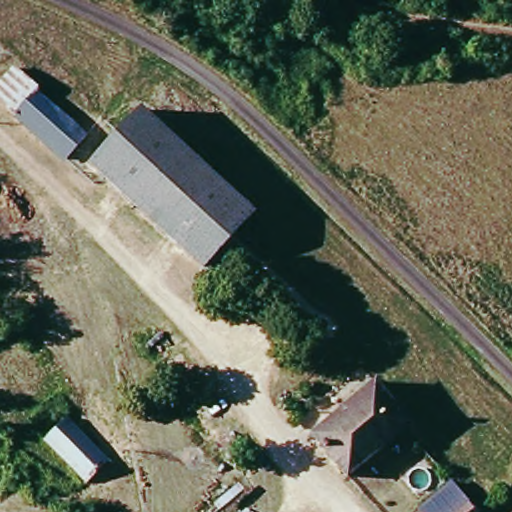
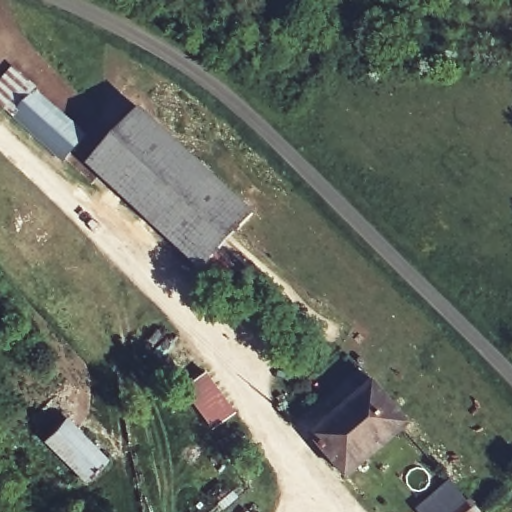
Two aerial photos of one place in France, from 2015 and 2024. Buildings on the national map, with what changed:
unchanged [(0,100),(0,81),(10,70),(86,135),(67,157),(0,100)]
unchanged [(242,266),(225,287),(87,171),(137,111),(257,211),(224,250),(242,266)]
new [(235,412),(211,430),(187,396),(195,390),(189,382),(205,370),(235,412)]
unchanged [(405,423),(347,473),(314,433),(371,383),(405,423)]
unchanged [(41,444),(60,423),(103,461),(84,483),(41,444)]
unchanged [(476,512),(417,512),(417,511),(449,482),(476,512)]

